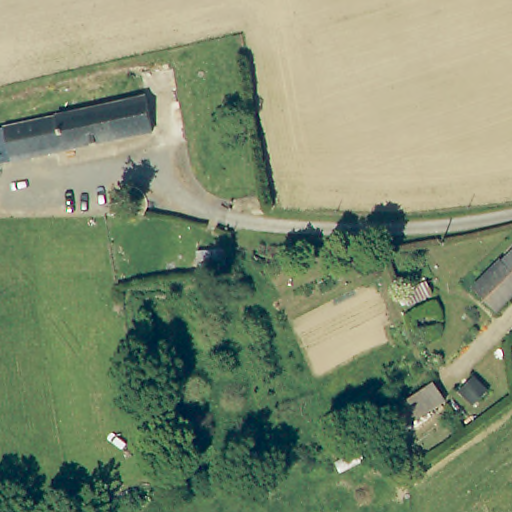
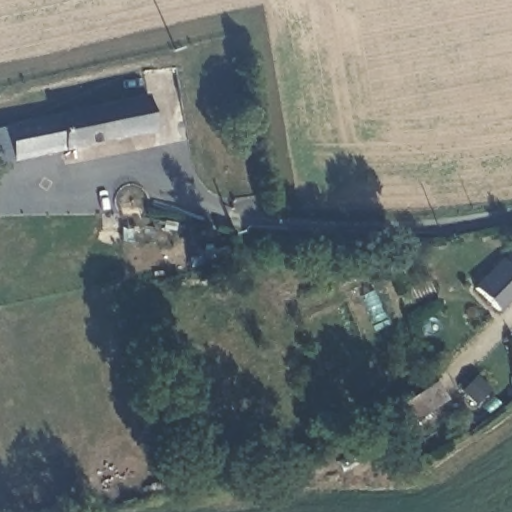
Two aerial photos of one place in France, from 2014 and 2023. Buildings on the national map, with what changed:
unchanged [(156,133),(10,161),(4,130),(59,120),(58,115),(149,98),(156,133)]
unchanged [(463,293),(493,265),(496,267),(512,251),(512,290),(485,316),(463,293)]
unchanged [(435,292),(407,296),(405,284),(434,280),(435,292)]
unchanged [(496,396),(482,407),(462,382),(475,371),(496,396)]
unchanged [(448,397),(398,433),(387,417),(436,381),(448,397)]

